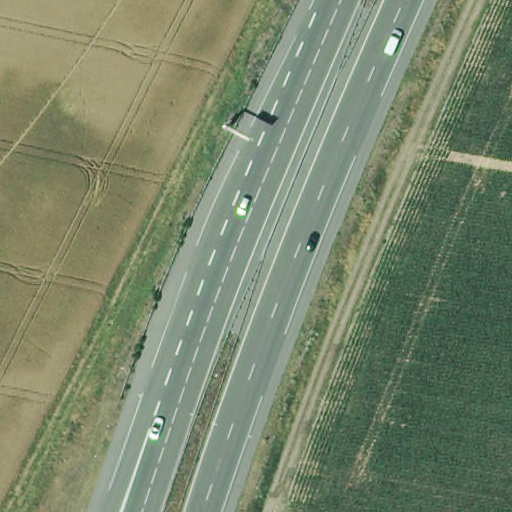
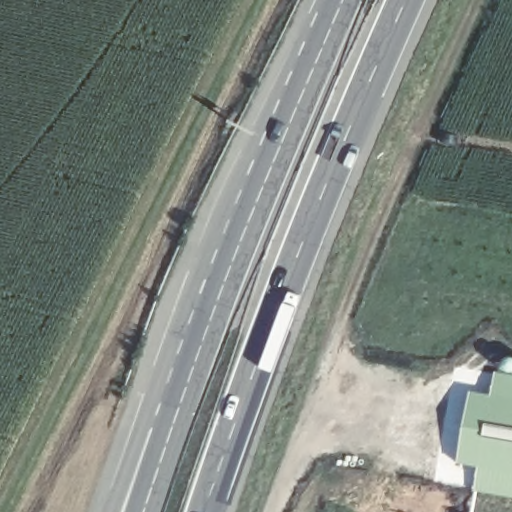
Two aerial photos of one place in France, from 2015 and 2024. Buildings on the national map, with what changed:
new [(455,464),(471,393),(490,399),(496,372),(512,374),(512,499),(472,492),(480,470),(455,464)]

